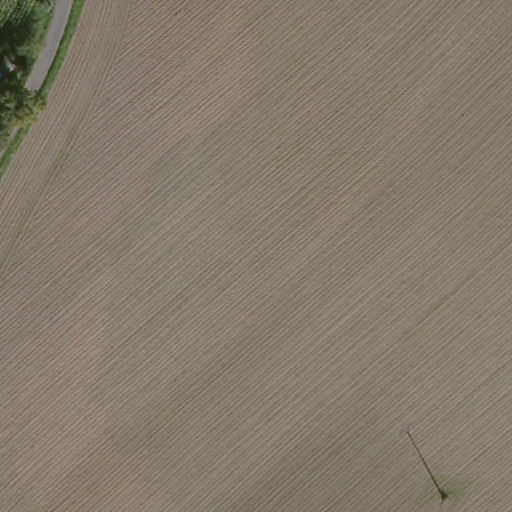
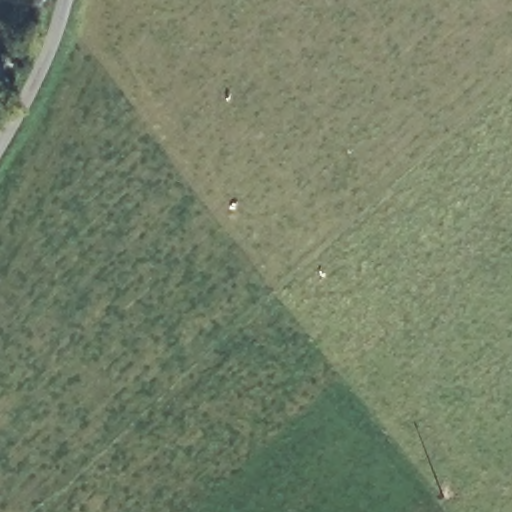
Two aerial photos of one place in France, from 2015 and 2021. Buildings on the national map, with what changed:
unchanged [(0,77),(1,75),(9,78),(2,90),(0,89),(0,77)]

